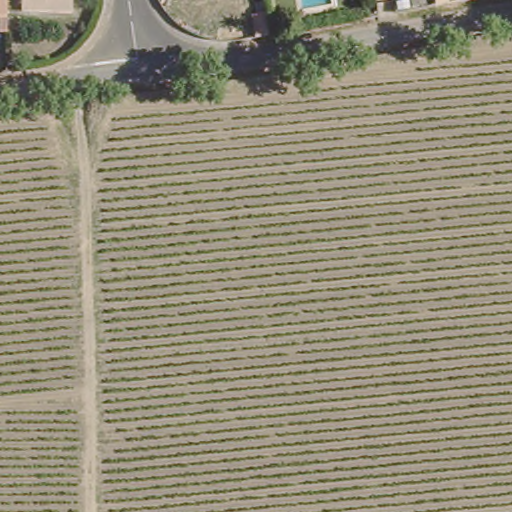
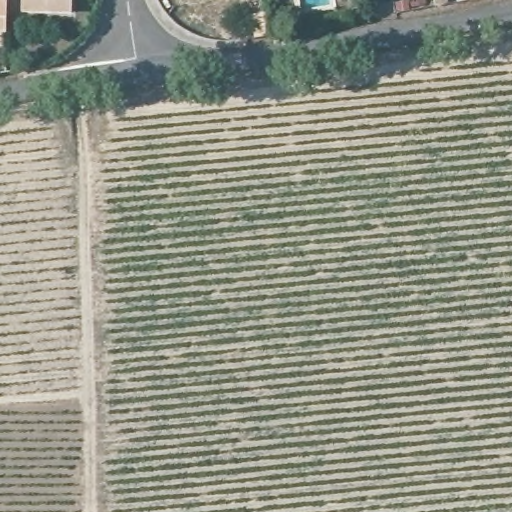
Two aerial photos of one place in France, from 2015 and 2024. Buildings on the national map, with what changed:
unchanged [(1,0),(1,23),(0,22),(0,0),(1,0)]
unchanged [(15,23),(15,0),(64,0),(64,23),(15,23)]
unchanged [(440,0),(440,4),(427,6),(427,0),(440,0)]

